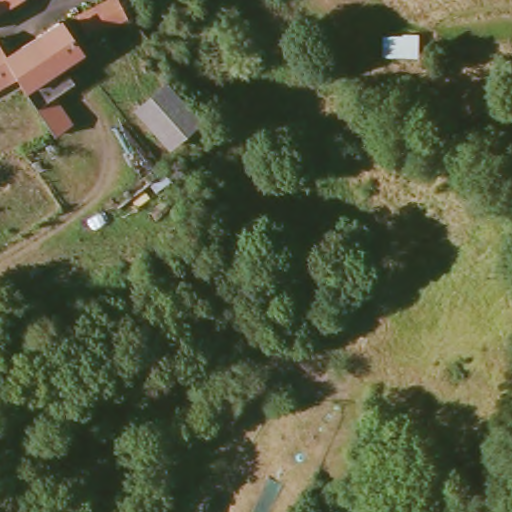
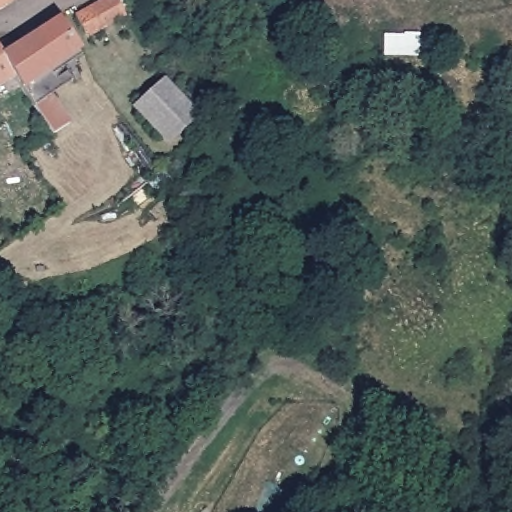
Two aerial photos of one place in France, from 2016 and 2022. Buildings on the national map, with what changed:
unchanged [(0,3),(0,0),(4,0),(0,3)]
unchanged [(128,5),(114,12),(118,17),(83,37),(69,12),(91,0),(126,0),(128,5)]
unchanged [(44,133),(12,80),(9,74),(0,58),(0,50),(58,21),(78,53),(31,81),(57,126),(44,133)]
unchanged [(383,32),(402,33),(402,31),(419,31),(418,55),(382,54),(383,32)]
unchanged [(9,74),(0,80),(0,58),(9,74)]
unchanged [(158,140),(131,99),(162,78),(187,119),(158,140)]

